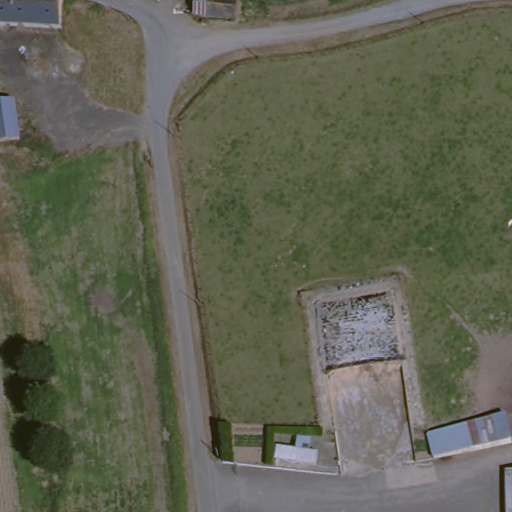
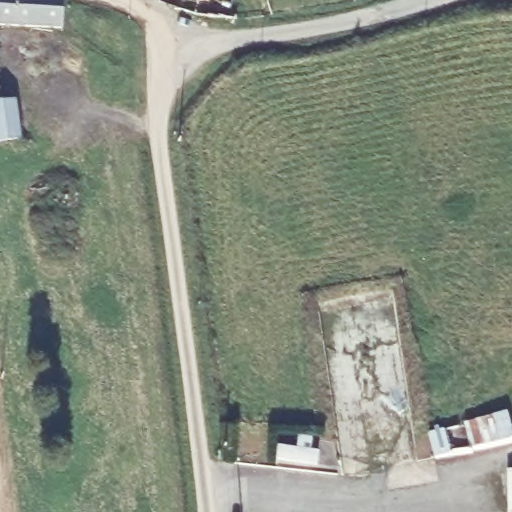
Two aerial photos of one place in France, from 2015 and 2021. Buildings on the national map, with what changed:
unchanged [(0,25),(0,0),(62,0),(60,30),(0,25)]
unchanged [(238,0),(236,19),(195,16),(198,0),(238,0)]
unchanged [(15,100),(21,139),(0,140),(0,103),(15,100)]
unchanged [(511,440),(435,458),(430,432),(506,416),(511,440)]
unchanged [(512,469),(512,512),(510,512),(507,469),(512,469)]

